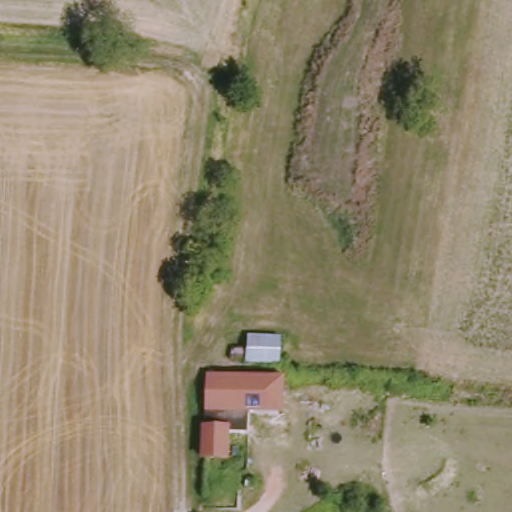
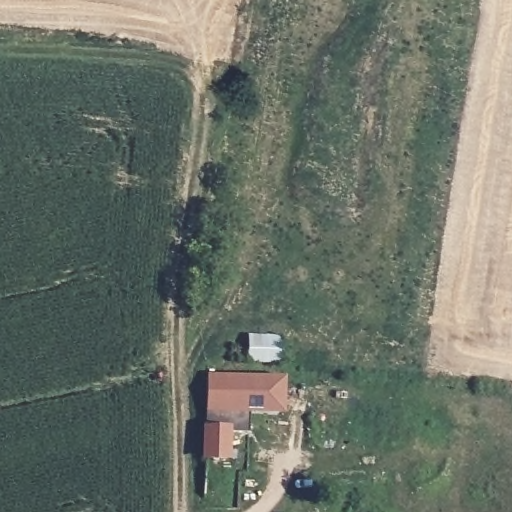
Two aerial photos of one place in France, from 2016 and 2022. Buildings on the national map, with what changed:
unchanged [(246,337),(281,339),(277,368),(248,367),(246,337)]
unchanged [(206,405),(206,402),(207,372),(279,374),(278,411),(249,410),(249,431),(248,431),(228,431),(228,444),(227,457),(205,456),(206,445),(206,426),(206,405)]

